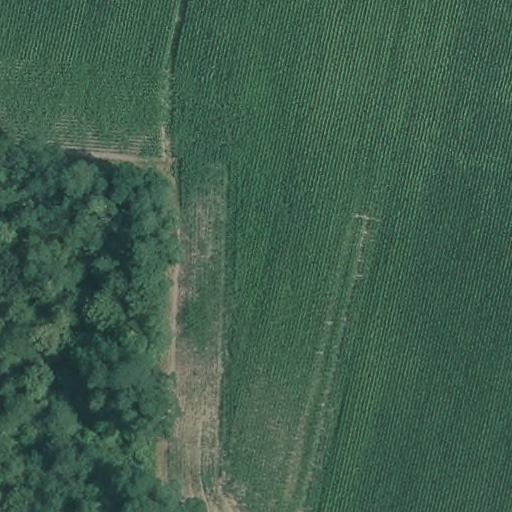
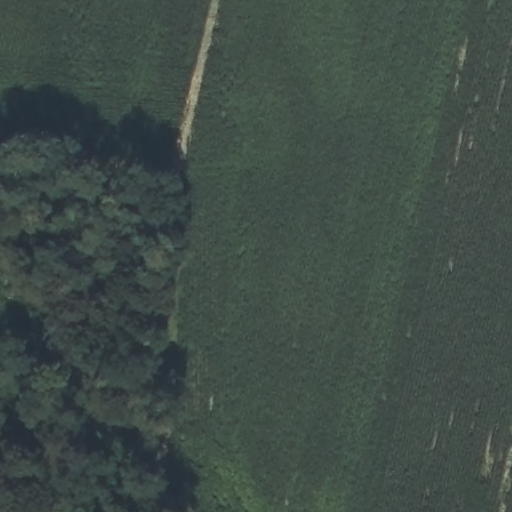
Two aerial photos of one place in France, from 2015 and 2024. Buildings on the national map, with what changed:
[]

